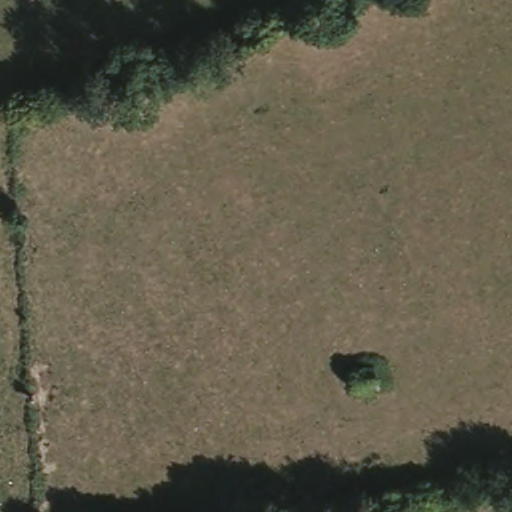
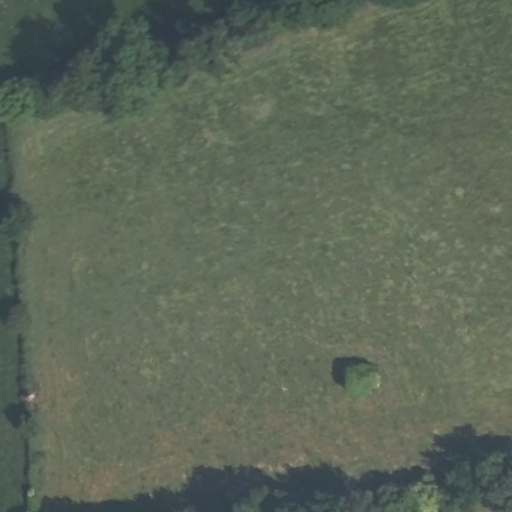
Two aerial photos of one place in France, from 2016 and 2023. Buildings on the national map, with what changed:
unchanged [(369,367),(373,388),(355,393),(350,371),(369,367)]

